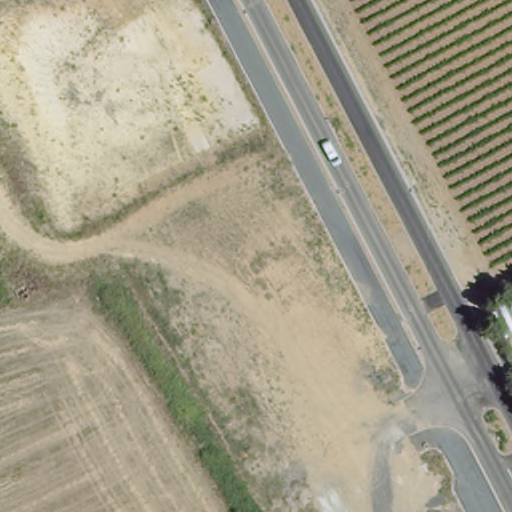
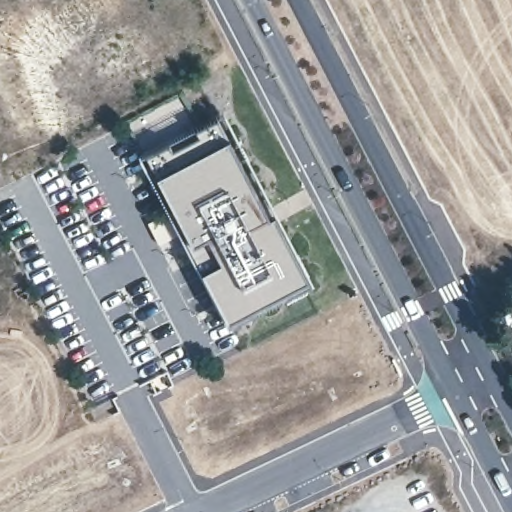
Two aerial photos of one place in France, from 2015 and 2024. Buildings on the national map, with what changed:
new [(148,156),(145,149),(168,136),(172,143),(198,130),(193,123),(216,111),(220,118),(301,274),(288,281),(290,284),(228,317),(182,229),(160,241),(149,219),(173,206),(184,228),(184,227),(185,226),(148,156)]
unchanged [(508,339),(491,307),(512,297),(512,337),(508,339)]

